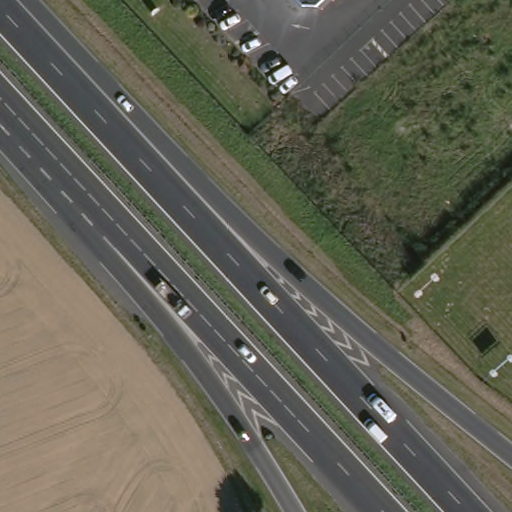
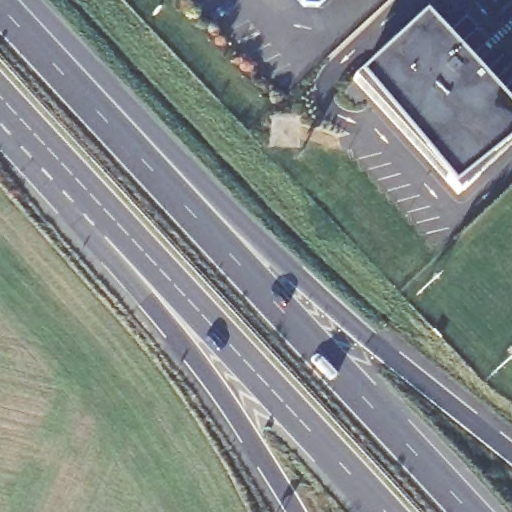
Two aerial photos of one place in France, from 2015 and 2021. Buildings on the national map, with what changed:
unchanged [(312,5),(307,0),(332,0),(326,5),(312,5)]
new [(418,26),(462,79),(465,76),(512,126),(512,143),(475,178),(472,175),(452,194),(352,87),(418,26)]

